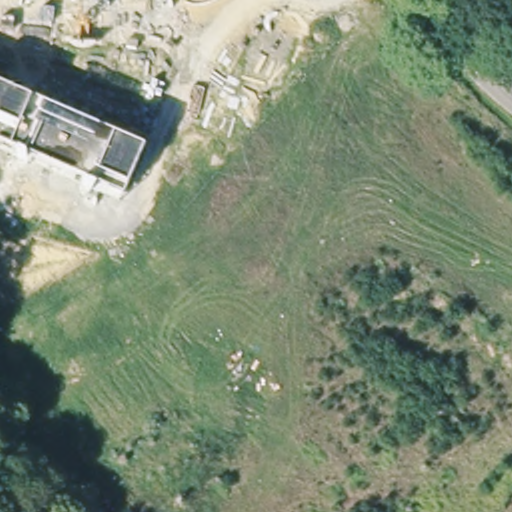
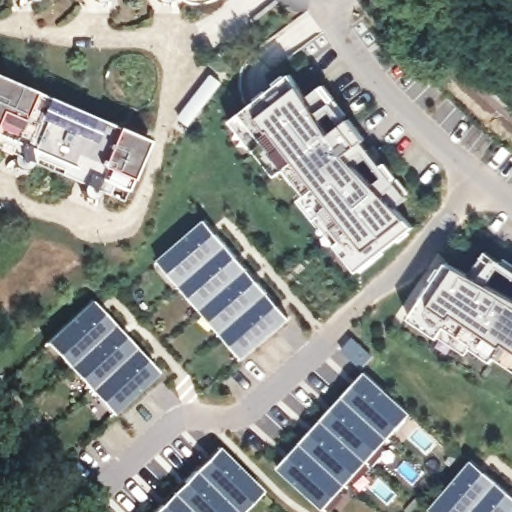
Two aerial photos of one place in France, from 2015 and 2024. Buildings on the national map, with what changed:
unchanged [(149,140),(128,190),(0,136),(0,76),(149,140)]
new [(337,250),(316,223),(319,220),(303,201),(307,198),(288,174),(279,180),(259,154),(256,155),(232,125),(243,116),(293,76),(308,100),(322,90),(349,123),(352,121),(368,141),(365,144),(372,152),(376,149),(387,164),(383,167),(410,201),(398,210),(417,230),(369,267),(361,273),(340,247),(337,250)]
new [(183,289),(161,264),(167,259),(201,230),(208,224),(219,237),(229,249),(239,260),(250,272),(261,285),(271,296),(281,308),(293,321),(285,327),(251,356),(246,362),(224,336),(203,312),(183,289)]
new [(512,268),(512,277),(501,270),(489,287),(473,278),(490,253),(512,268)]
new [(495,363),(474,350),(469,356),(442,338),(441,340),(412,320),(419,310),(449,265),(473,278),(489,287),(512,299),(512,366),(499,357),(495,363)]
new [(162,375),(155,382),(122,412),(116,417),(93,393),(72,370),(50,346),(55,340),(88,310),(95,303),(107,317),(118,328),(129,340),(139,351),(150,362),(162,375)]
new [(288,478),(281,471),(292,458),(303,446),(313,435),(324,423),(335,411),(345,400),(355,388),(367,375),(374,382),(407,411),(413,417),(390,441),(370,465),(348,488),(326,512),(320,507),(288,478)]
new [(176,496),(187,485),(198,473),(209,462),(221,450),(228,456),(259,487),(265,493),(246,512),(160,512),(165,507),(176,496)]
new [(468,471),(475,464),(488,475),(499,485),(511,495),(512,496),(512,512),(434,512),(439,505),(468,471)]

